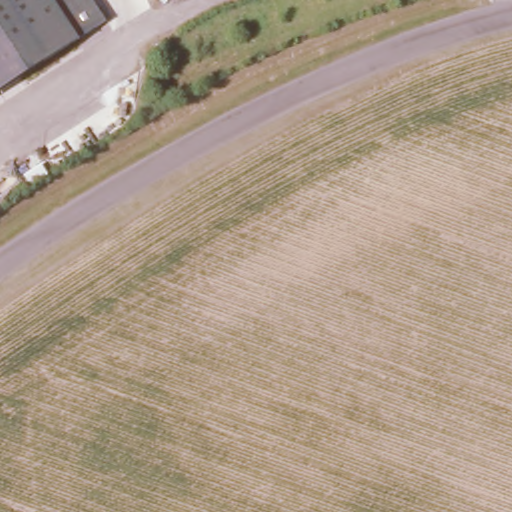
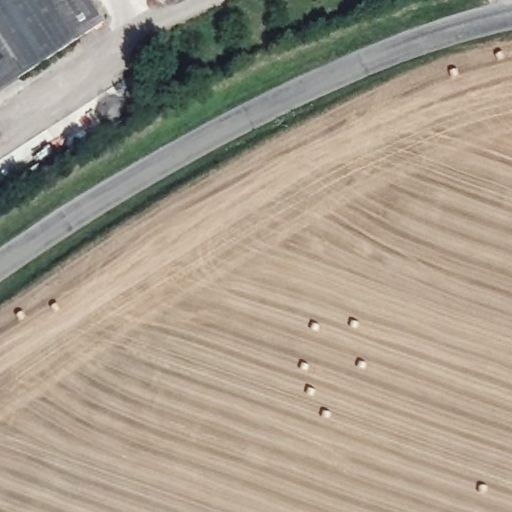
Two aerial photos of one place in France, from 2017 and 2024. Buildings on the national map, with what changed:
unchanged [(79,40),(0,93),(0,0),(92,0),(105,21),(79,40)]

